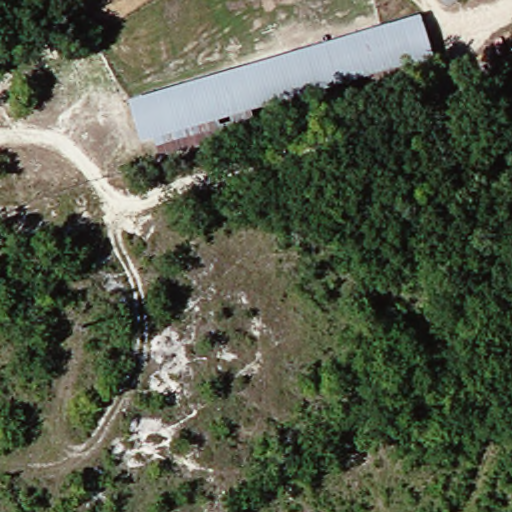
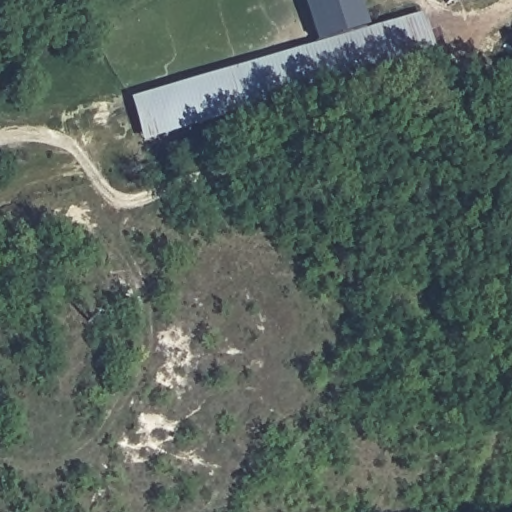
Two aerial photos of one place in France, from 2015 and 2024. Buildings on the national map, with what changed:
new [(300,0),(356,0),(365,27),(313,44),(300,0)]
unchanged [(443,7),(440,0),(461,0),(443,7)]
unchanged [(433,64),(178,141),(180,155),(157,160),(153,147),(140,150),(130,103),(419,18),(433,64)]

